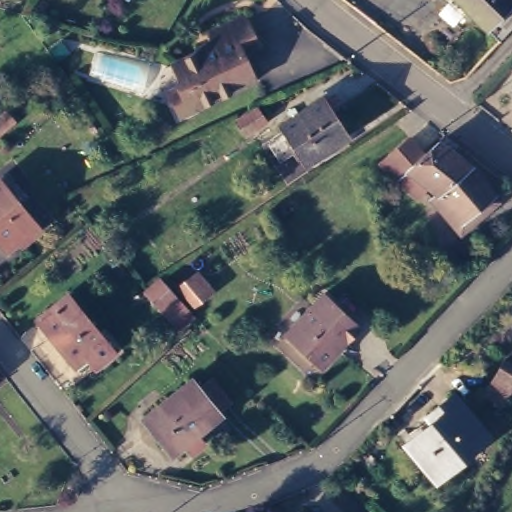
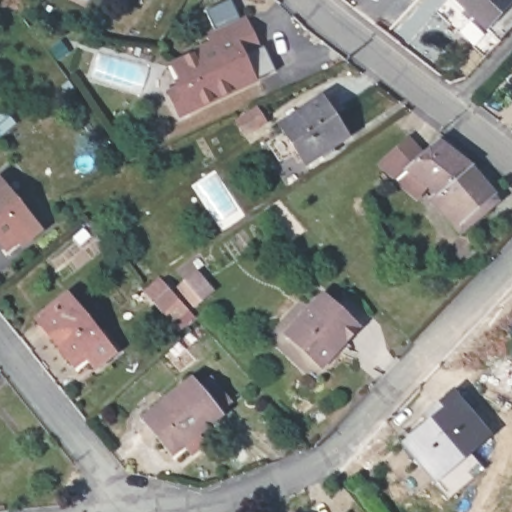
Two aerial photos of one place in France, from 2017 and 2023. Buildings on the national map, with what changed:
unchanged [(465,8),(456,0),(512,0),(512,5),(486,29),(468,12),(464,16),(460,13),(465,8)]
unchanged [(486,29),(512,5),(512,28),(500,42),(486,29)]
unchanged [(173,93),(183,88),(187,86),(177,65),(182,62),(219,45),(213,34),(250,17),(265,48),(248,56),(260,81),(195,112),(185,117),(173,93)]
unchanged [(325,160),(321,154),(305,164),(280,125),(323,98),(348,137),(331,147),(335,153),(325,160)]
unchanged [(236,121),(257,108),(265,121),(243,134),(236,121)]
unchanged [(6,111),(16,122),(0,136),(0,116),(6,111)]
unchanged [(431,200),(438,194),(407,169),(438,141),(470,166),(495,194),(494,194),(499,200),(488,210),(488,211),(467,228),(460,233),(431,200)]
unchanged [(22,245),(18,239),(5,249),(0,243),(0,180),(36,224),(41,230),(22,245)]
unchanged [(194,306),(177,289),(185,282),(188,282),(195,275),(200,280),(210,291),(194,306)]
unchanged [(168,321),(151,303),(166,289),(183,308),(168,321)]
unchanged [(286,334),(323,294),(360,327),(345,342),(341,338),(318,363),(286,334)]
unchanged [(96,367),(86,355),(75,365),(38,320),(68,296),(105,340),(114,352),(96,367)]
unchanged [(190,350),(198,343),(205,351),(198,358),(190,350)]
unchanged [(512,391),(503,406),(484,396),(503,360),(512,365),(512,391)]
unchanged [(188,449),(183,444),(171,453),(144,419),(192,380),(198,388),(210,378),(230,402),(218,412),(220,415),(190,439),(194,445),(188,449)]
unchanged [(437,422),(432,416),(457,395),(492,436),(441,479),(411,444),(437,422)]

